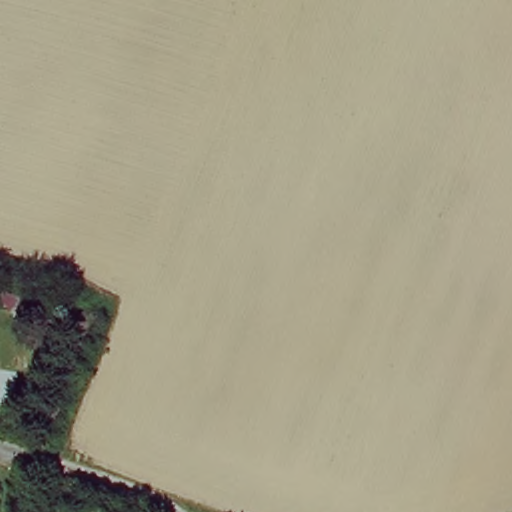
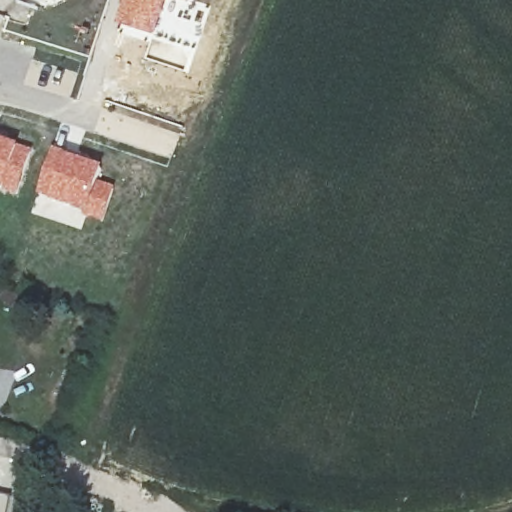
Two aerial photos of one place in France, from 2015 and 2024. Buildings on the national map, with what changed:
new [(124,0),(167,0),(155,35),(117,23),(124,0)]
new [(191,2),(185,0),(191,0),(191,2)]
new [(31,150),(16,196),(0,191),(0,139),(31,150)]
new [(50,148),(103,168),(99,181),(115,187),(103,222),(50,203),(50,200),(35,194),(50,148)]
new [(12,497),(9,512),(0,512),(0,494),(12,497)]

